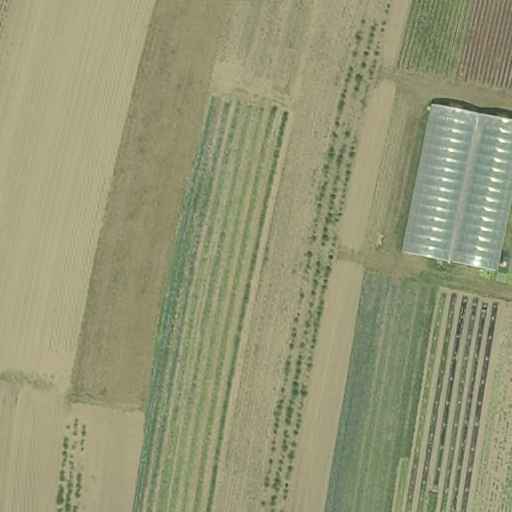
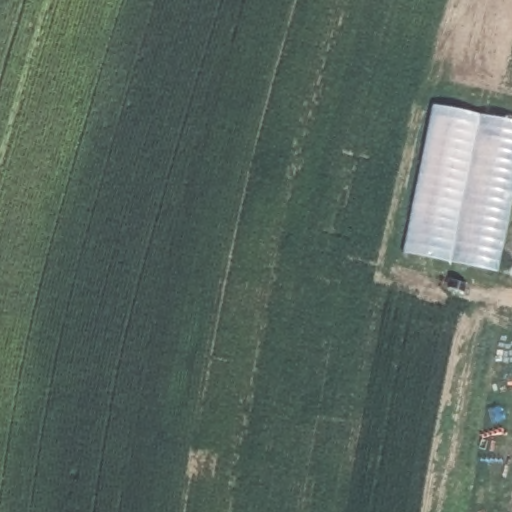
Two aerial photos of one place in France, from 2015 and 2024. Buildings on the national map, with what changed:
unchanged [(495,272),(402,253),(432,105),(512,121),(512,188),(495,272)]

